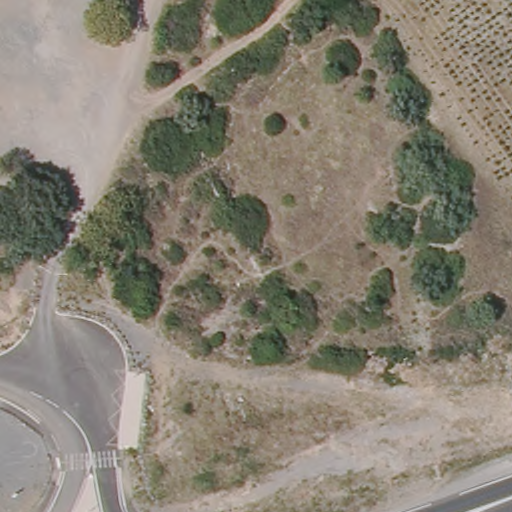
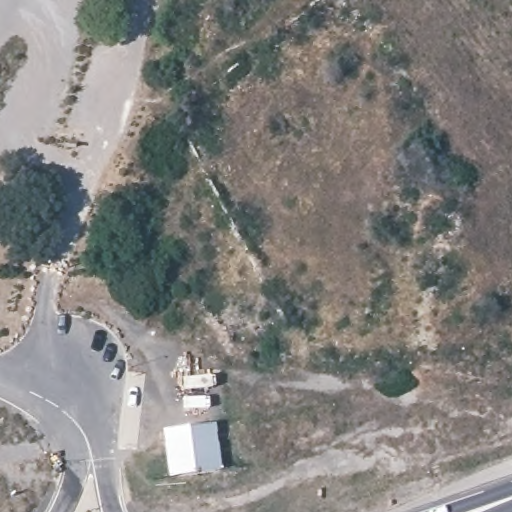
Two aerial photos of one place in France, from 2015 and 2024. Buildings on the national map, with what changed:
new [(221,470),(170,476),(163,430),(215,425),(221,470)]

